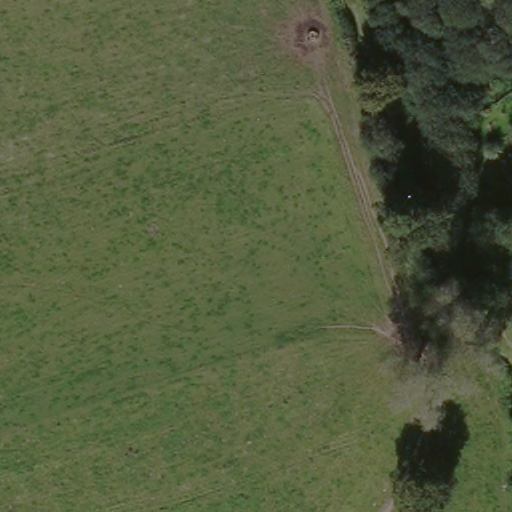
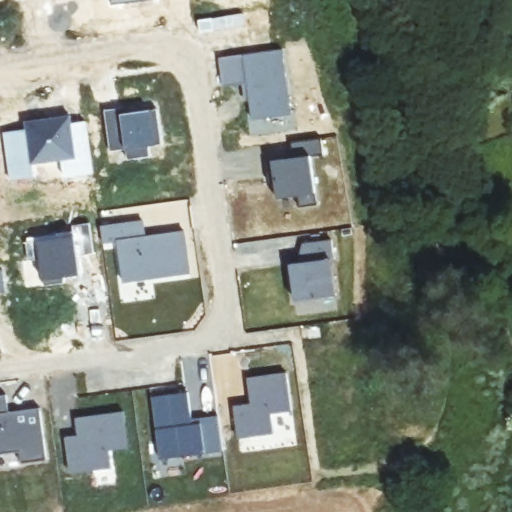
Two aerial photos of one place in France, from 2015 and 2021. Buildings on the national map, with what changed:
new [(108,4),(107,0),(144,0),(108,4)]
new [(289,115),(251,120),(246,84),(221,86),(218,57),(243,55),(282,50),(289,115)]
new [(121,109),(122,115),(157,110),(161,146),(148,147),(149,158),(126,161),(126,150),(109,152),(104,111),(121,109)]
new [(26,129),(25,120),(70,116),(71,123),(85,121),(91,174),(63,177),(61,159),(31,163),(33,175),(8,179),(3,131),(26,129)]
new [(292,158),(291,141),(321,139),(323,156),(311,157),(316,205),(297,207),(296,195),(275,197),(273,181),(267,181),(265,160),(292,158)]
new [(143,221),(145,236),(184,232),(189,274),(123,282),(118,241),(103,243),(101,226),(143,221)]
new [(74,235),(73,224),(90,222),(93,254),(78,256),(80,275),(63,276),(63,281),(43,283),(40,257),(28,258),(26,240),(74,235)]
new [(303,263),(301,246),(330,242),(333,261),(328,261),(332,297),(292,302),(288,265),(303,263)]
new [(3,271),(5,291),(0,292),(0,272),(3,271)]
new [(251,402),(248,376),(287,372),(291,408),(271,411),(273,431),(236,435),(233,405),(251,402)]
new [(188,391),(193,428),(201,427),(200,422),(218,420),(223,451),(159,458),(153,395),(188,391)]
new [(8,395),(9,412),(41,409),(46,461),(21,465),(19,452),(0,454),(0,396),(8,395)]
new [(76,434),(74,416),(121,411),(126,447),(106,450),(108,468),(68,472),(64,435),(76,434)]

